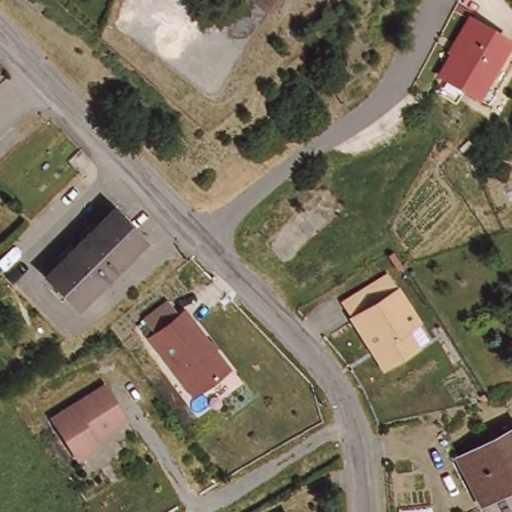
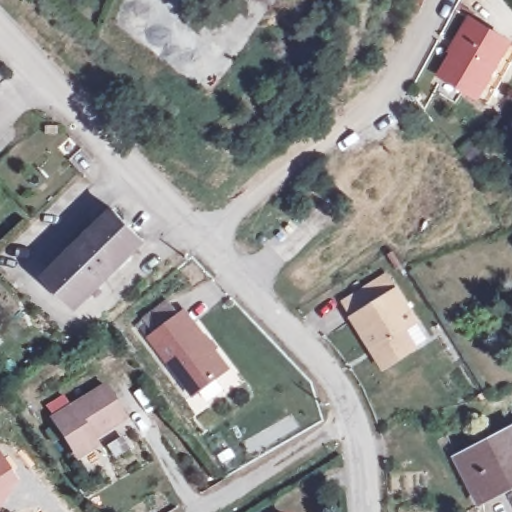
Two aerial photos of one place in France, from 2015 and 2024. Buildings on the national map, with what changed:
unchanged [(483,95),(459,80),(450,95),(430,81),(470,12),(512,38),(512,47),(483,95)]
unchanged [(490,164),(479,174),(459,150),(470,140),(490,164)]
unchanged [(114,212),(132,231),(144,243),(99,285),(81,303),(76,308),(70,302),(66,297),(47,277),(46,276),(59,265),(60,263),(74,250),(78,245),(85,240),(99,225),(110,215),(113,211),(114,212)]
unchanged [(427,340),(384,367),(344,303),(387,276),(427,340)]
unchanged [(166,297),(175,311),(186,305),(198,320),(202,317),(236,366),(194,397),(146,331),(152,327),(143,312),(166,297)]
unchanged [(55,420),(107,387),(127,420),(75,453),(55,420)]
unchanged [(479,498),(459,457),(512,430),(512,491),(483,506),(479,498)]
new [(0,504),(0,451),(21,483),(0,504)]

